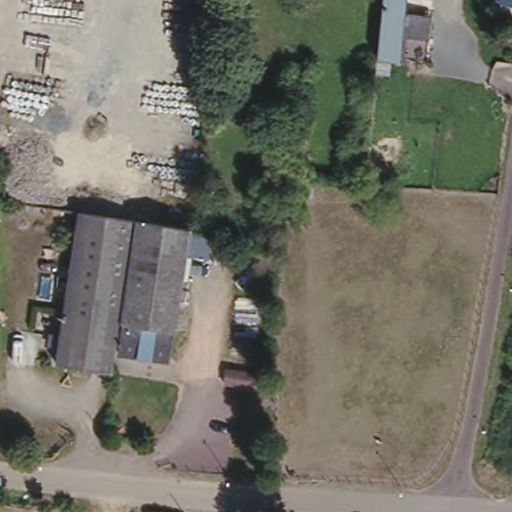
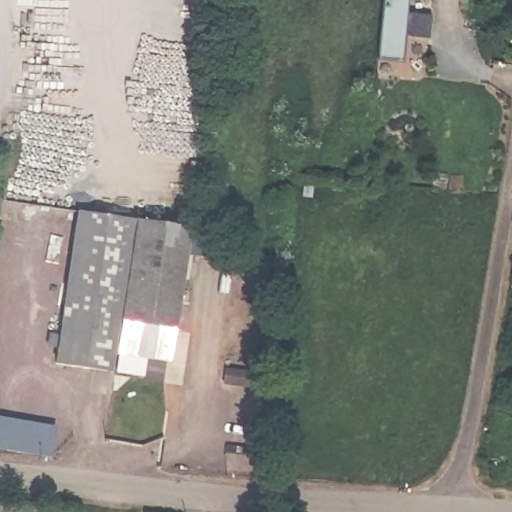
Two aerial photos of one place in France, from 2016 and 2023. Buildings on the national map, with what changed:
unchanged [(376,0),(408,0),(406,16),(430,17),(429,40),(405,39),(402,63),(371,60),(376,0)]
unchanged [(133,218),(106,371),(53,363),(79,210),(133,218)]
unchanged [(121,321),(119,321),(137,219),(189,228),(172,330),(170,329),(165,362),(115,355),(121,321)]
new [(56,431),(52,454),(0,444),(0,420),(56,431)]

